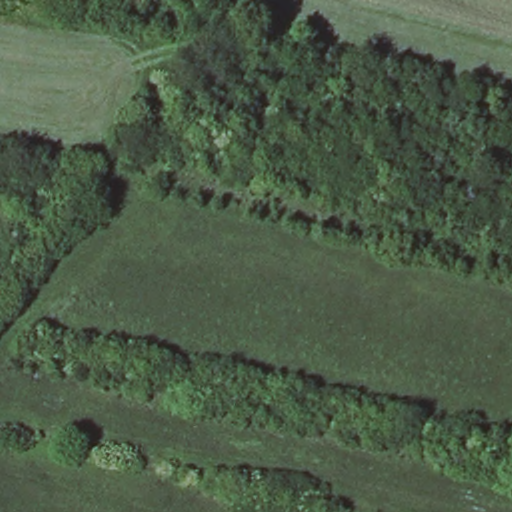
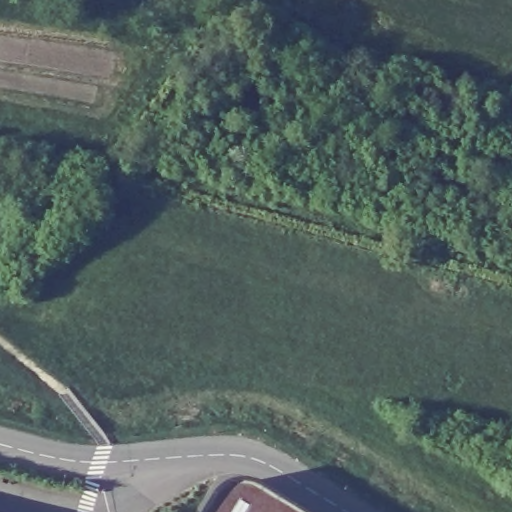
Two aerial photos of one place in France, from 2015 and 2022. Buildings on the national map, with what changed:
new [(232,489),(245,486),(255,487),(270,495),(299,512),(213,512),(222,497),(232,489)]

